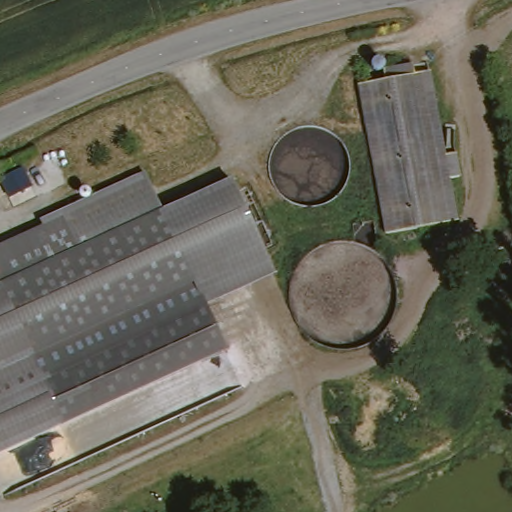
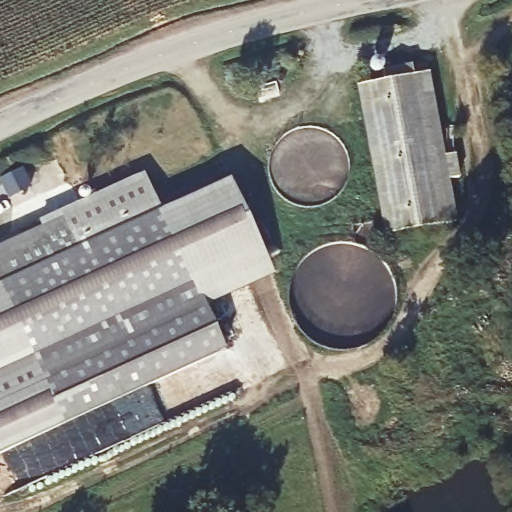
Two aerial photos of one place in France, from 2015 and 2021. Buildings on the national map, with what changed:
unchanged [(382,80),(380,70),(409,64),(411,75),(426,72),(441,154),(450,152),(454,177),(444,179),(451,217),(386,229),(360,84),(382,80)]
unchanged [(149,169),(160,207),(76,245),(61,212),(149,169)]
unchanged [(229,180),(275,276),(204,306),(160,207),(229,180)]
unchanged [(204,306),(224,350),(58,424),(0,294),(0,240),(61,212),(76,245),(160,207),(204,306)]
unchanged [(58,424),(61,434),(0,458),(0,294),(58,424)]

